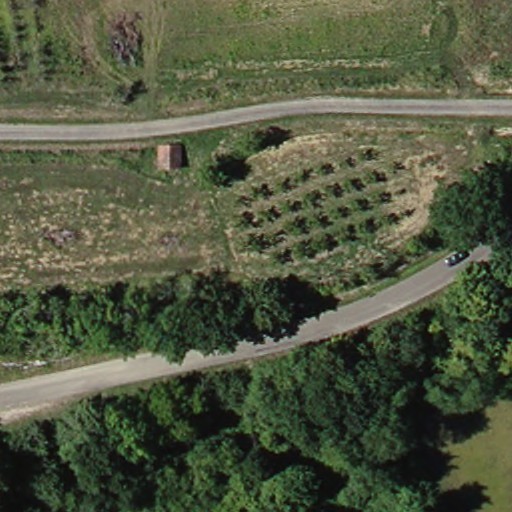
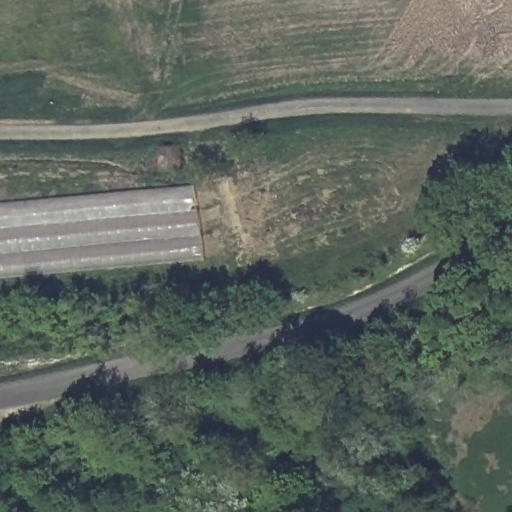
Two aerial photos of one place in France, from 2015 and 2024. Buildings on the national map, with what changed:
unchanged [(173,159),(153,159),(153,137),(172,136),(173,159)]
new [(209,257),(0,276),(0,203),(196,185),(209,257)]

